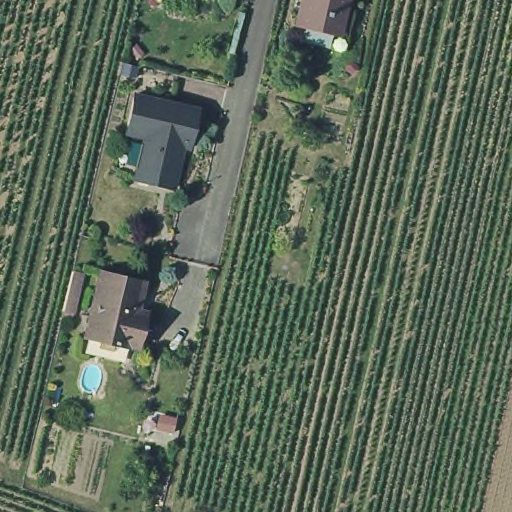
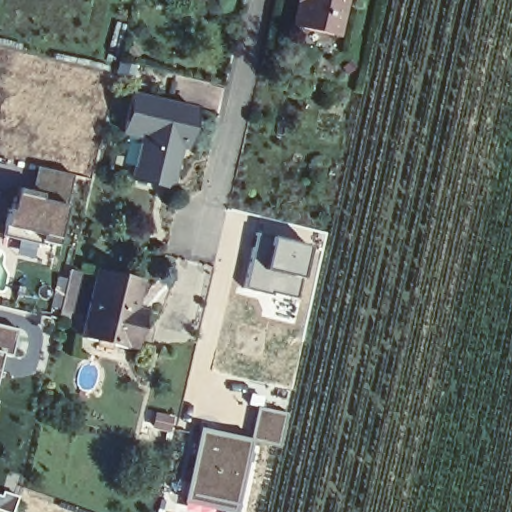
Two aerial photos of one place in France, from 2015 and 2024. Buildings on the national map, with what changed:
unchanged [(340,29),(296,19),(300,0),(347,0),(340,29)]
unchanged [(152,179),(133,174),(141,144),(143,133),(125,129),(134,92),(135,90),(198,105),(189,138),(188,144),(182,142),(176,172),(173,183),(152,179)]
new [(32,195),(34,169),(74,176),(58,245),(7,235),(18,193),(32,195)]
new [(256,232),(307,245),(294,299),(242,287),(256,232)]
unchanged [(143,313),(138,337),(128,335),(127,338),(84,328),(100,260),(143,270),(136,300),(146,302),(143,313)]
unchanged [(58,310),(64,283),(67,271),(78,274),(68,312),(58,310)]
new [(11,358),(0,355),(0,326),(17,329),(11,358)]
new [(253,442),(259,406),(289,414),(281,451),(253,445),(239,508),(191,500),(203,434),(253,442)]

